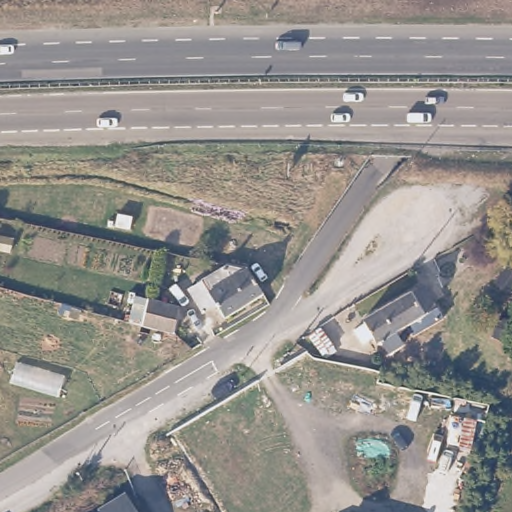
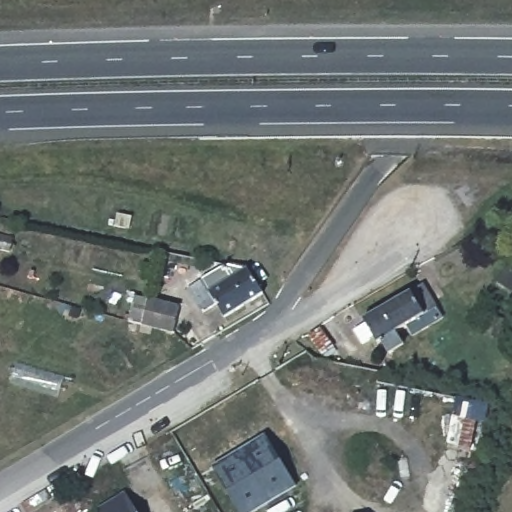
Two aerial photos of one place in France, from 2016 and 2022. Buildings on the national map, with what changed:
unchanged [(263,302),(235,317),(230,307),(207,319),(192,293),(237,270),(246,272),(263,302)]
unchanged [(445,311),(417,327),(414,322),(402,327),(409,338),(389,349),(383,337),(379,339),(375,330),(362,338),(353,324),(365,318),(363,316),(427,281),(445,311)]
unchanged [(181,306),(173,335),(132,324),(135,314),(140,296),(181,306)]
new [(251,512),(240,512),(212,467),(266,434),(297,484),(251,512)]
unchanged [(131,494),(142,512),(102,512),(131,494)]

